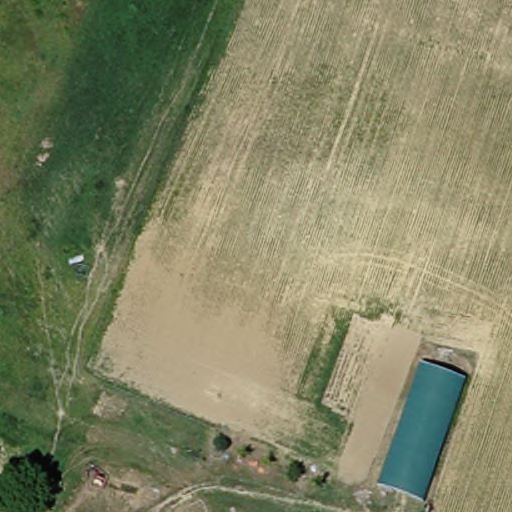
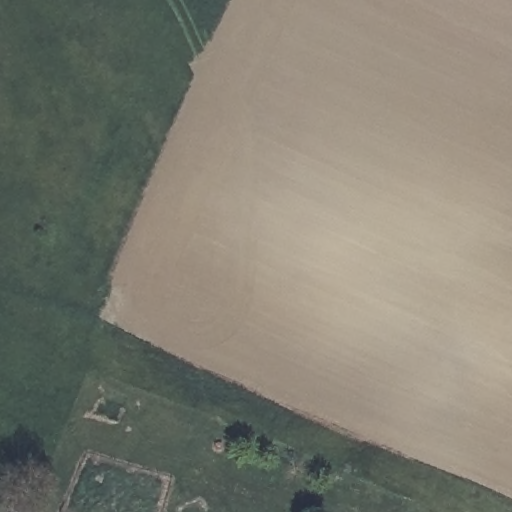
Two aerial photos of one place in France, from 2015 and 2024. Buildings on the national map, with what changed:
demolished [(429,499),(385,482),(426,361),(472,376),(429,499)]
unchanged [(43,512),(17,512),(19,505),(43,512)]

